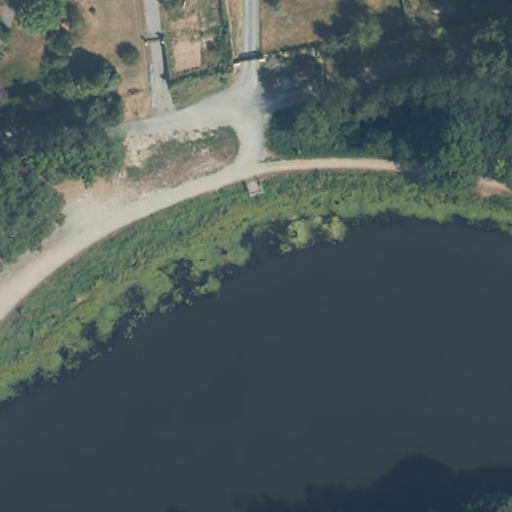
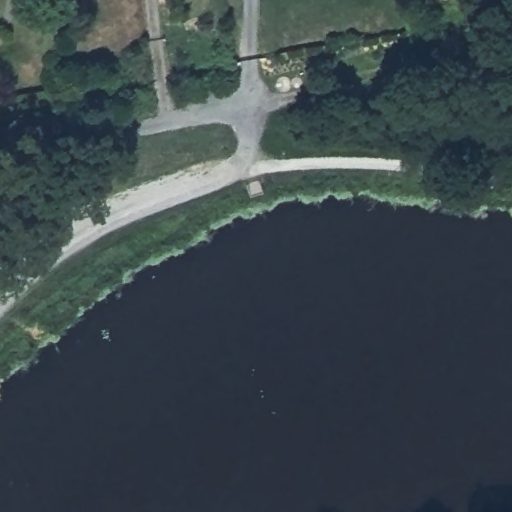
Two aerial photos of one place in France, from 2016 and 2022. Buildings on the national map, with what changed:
unchanged [(66,86),(107,81),(110,95),(67,98),(66,86)]

